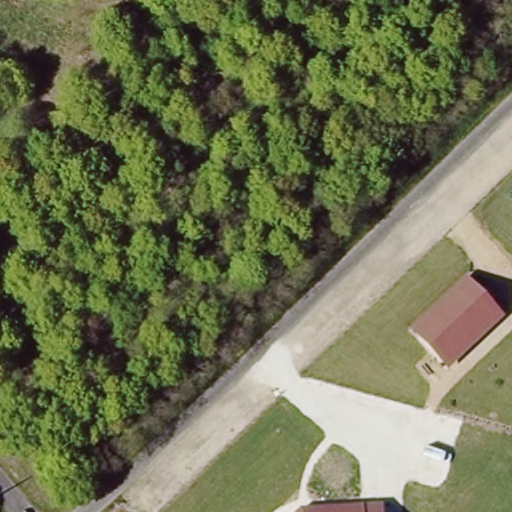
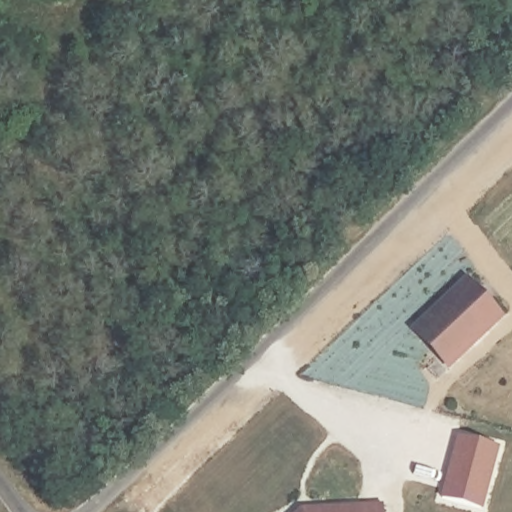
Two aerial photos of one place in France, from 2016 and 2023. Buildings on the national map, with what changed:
unchanged [(467,275),(504,317),(448,371),(409,329),(467,275)]
new [(492,443),(476,506),(437,496),(453,433),(492,443)]
unchanged [(301,510),(383,505),(383,512),(299,512),(301,510)]

